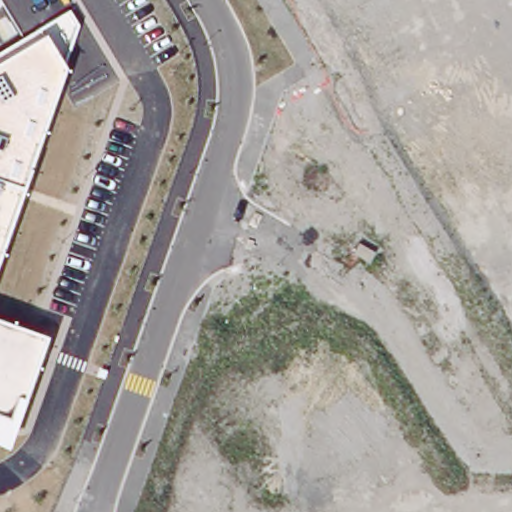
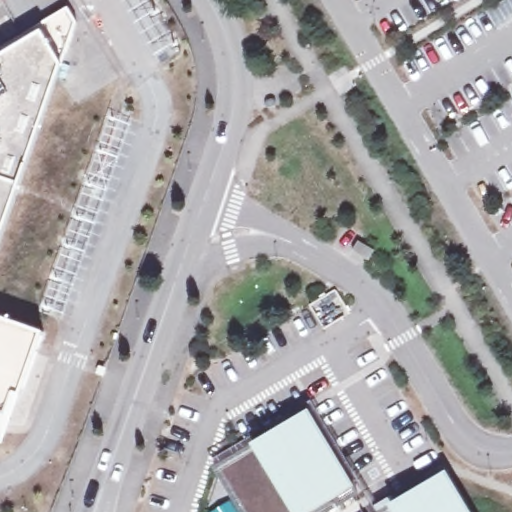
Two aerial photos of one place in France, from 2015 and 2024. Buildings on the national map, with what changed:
unchanged [(67,10),(77,25),(0,243),(0,50),(67,10)]
unchanged [(44,335),(4,447),(0,445),(0,319),(44,335)]
new [(251,445),(309,410),(354,489),(359,496),(331,512),(239,512),(212,468),(251,445)]
new [(390,506),(446,472),(470,512),(379,512),(390,506)]

